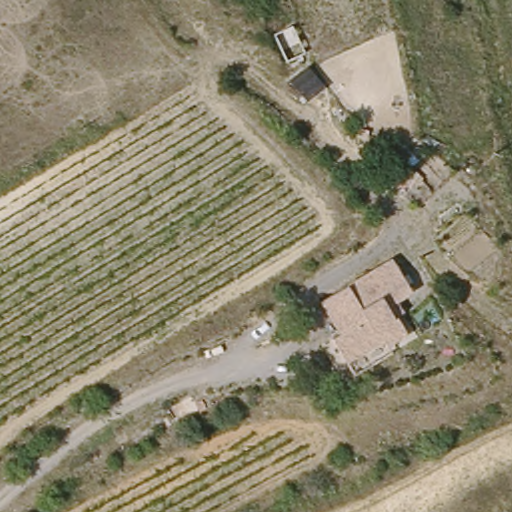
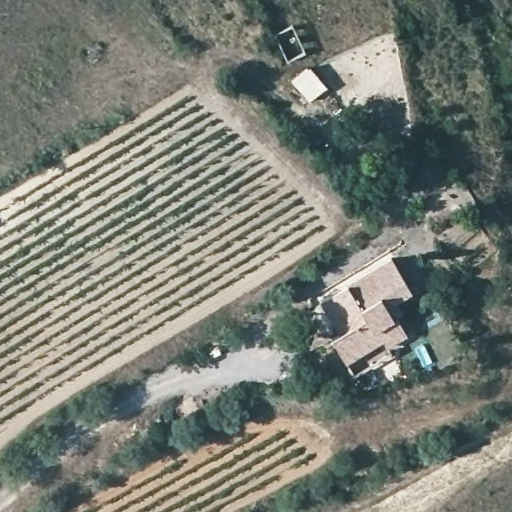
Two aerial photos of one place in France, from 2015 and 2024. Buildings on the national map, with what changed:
unchanged [(412,293),(397,302),(402,310),(392,311),(405,332),(387,344),(384,337),(345,364),(329,338),(337,331),(317,305),(390,254),(412,293)]

